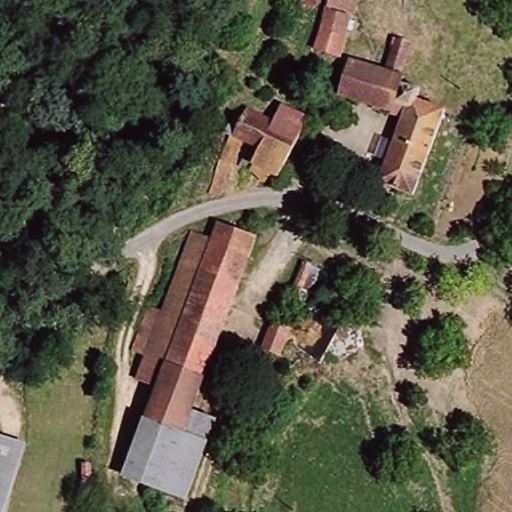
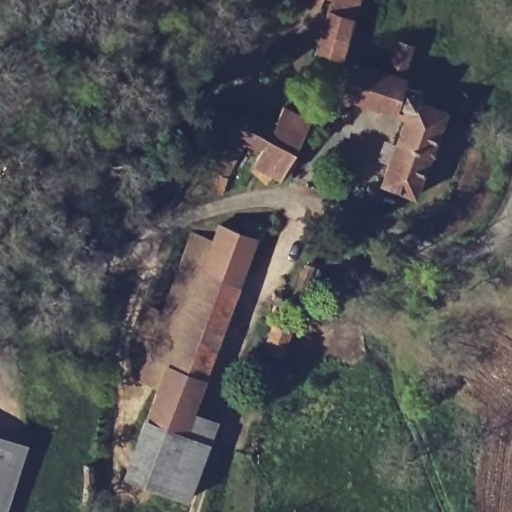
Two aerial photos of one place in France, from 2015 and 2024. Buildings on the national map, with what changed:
unchanged [(310,43),(330,0),(362,0),(354,18),(350,16),(332,54),(310,43)]
unchanged [(428,50),(416,77),(422,80),(417,93),(447,107),(412,196),(377,182),(408,107),(395,101),(390,113),(341,91),(357,57),(392,74),(407,39),(428,50)]
unchanged [(251,138),(223,192),(210,186),(252,102),(275,114),(282,101),(310,114),(273,176),(252,164),(261,144),(251,138)]
unchanged [(166,359),(145,351),(187,233),(207,240),(215,219),(253,231),(197,396),(158,383),(166,359)]
unchanged [(293,333),(287,352),(268,346),(275,327),(293,333)]
unchanged [(185,429),(205,436),(187,493),(127,473),(158,383),(197,396),(185,429)]
unchanged [(28,447),(3,512),(0,512),(0,436),(28,447)]

